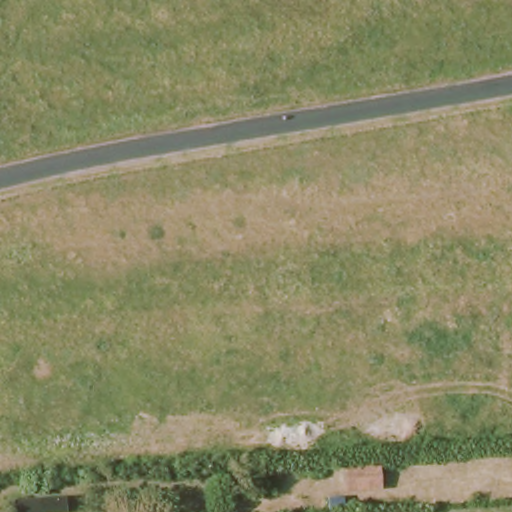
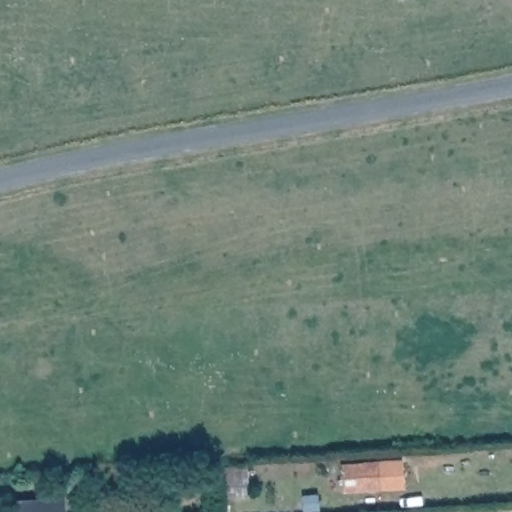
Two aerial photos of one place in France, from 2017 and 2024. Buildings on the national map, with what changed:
unchanged [(390,467),(390,489),(342,491),(341,470),(390,467)]
unchanged [(66,511),(35,512),(15,512),(15,497),(65,494),(66,511)]

